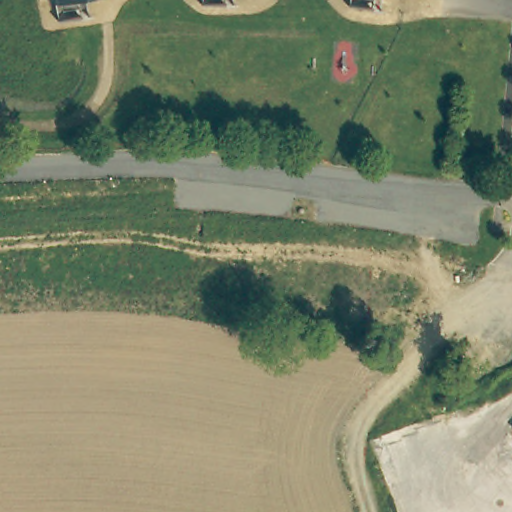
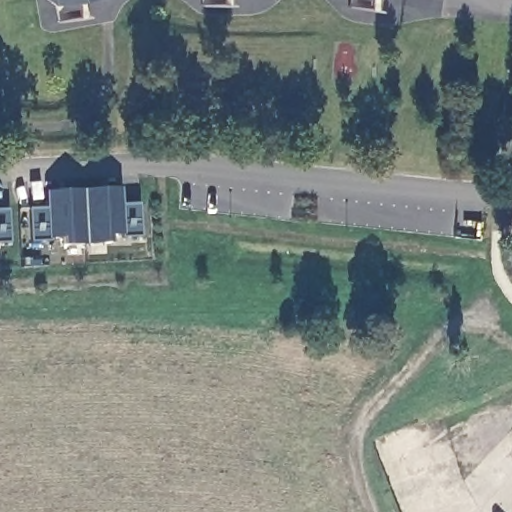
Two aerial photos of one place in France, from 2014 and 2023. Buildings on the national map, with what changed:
unchanged [(53,4),(48,0),(73,0),(54,4),(53,4)]
new [(124,236),(123,234),(109,235),(111,243),(63,245),(63,238),(49,238),(49,241),(32,241),(31,207),(48,207),(48,190),(121,187),(124,204),(140,202),(142,236),(124,236)]
new [(0,209),(9,209),(10,242),(0,242),(0,209)]

